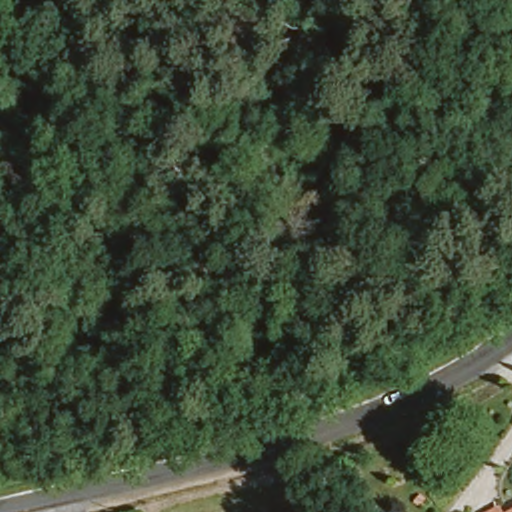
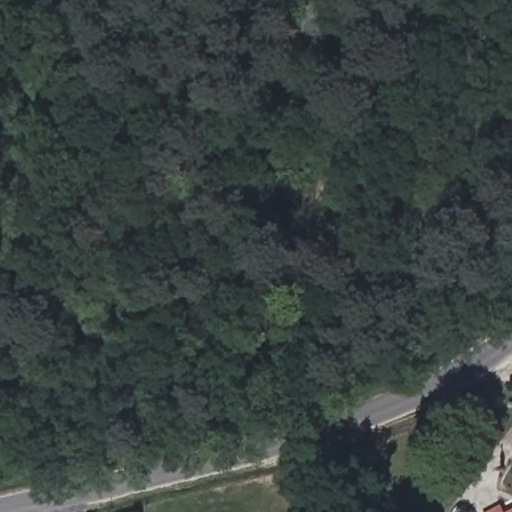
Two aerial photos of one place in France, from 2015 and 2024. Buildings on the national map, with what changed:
unchanged [(512,506),(512,512),(499,512),(512,506)]

